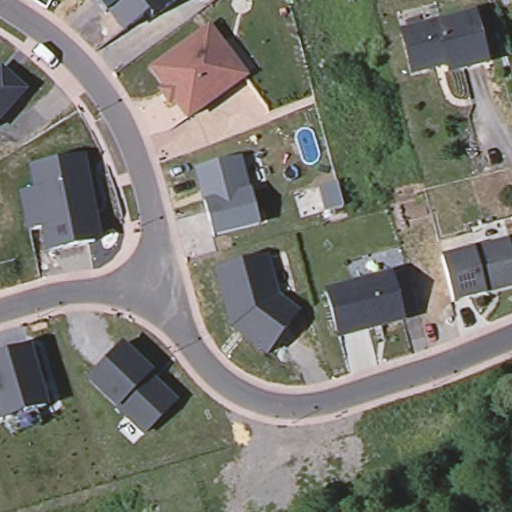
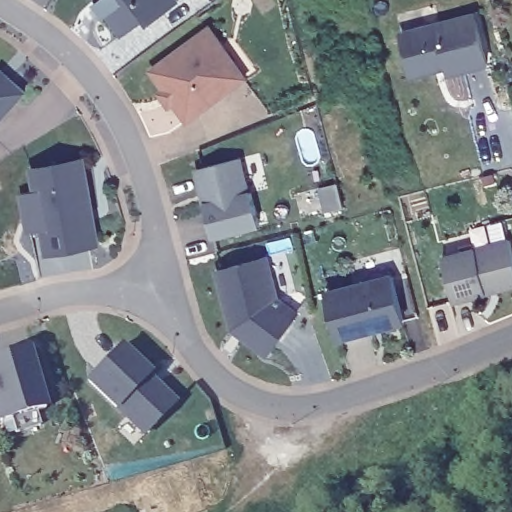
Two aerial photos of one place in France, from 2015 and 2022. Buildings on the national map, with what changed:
unchanged [(108,12),(106,13),(96,1),(95,0),(180,0),(150,20),(147,16),(123,35),(108,12)]
unchanged [(474,10),(486,60),(451,69),(448,61),(412,70),(401,28),(474,10)]
unchanged [(161,89),(166,85),(153,67),(208,25),(244,74),(188,116),(174,96),(169,100),(161,89)]
unchanged [(8,74),(24,88),(0,115),(0,68),(0,67),(8,74)]
unchanged [(259,221),(213,233),(198,171),(201,164),(243,154),(259,221)]
unchanged [(44,231),(25,233),(19,195),(33,190),(29,171),(86,160),(100,243),(48,255),(44,231)]
unchanged [(511,235),(512,241),(512,283),(501,285),(496,281),(486,284),(487,289),(453,298),(442,253),(511,235)]
unchanged [(273,294),(296,311),(266,349),(235,326),(216,266),(262,254),(273,294)]
unchanged [(403,319),(384,324),(361,329),(336,335),(326,290),(349,284),(372,279),(392,274),(403,319)]
unchanged [(24,426),(20,412),(0,418),(0,354),(15,349),(27,345),(44,404),(49,419),(29,425),(24,426)]
unchanged [(123,346),(178,402),(145,435),(86,382),(123,346)]

